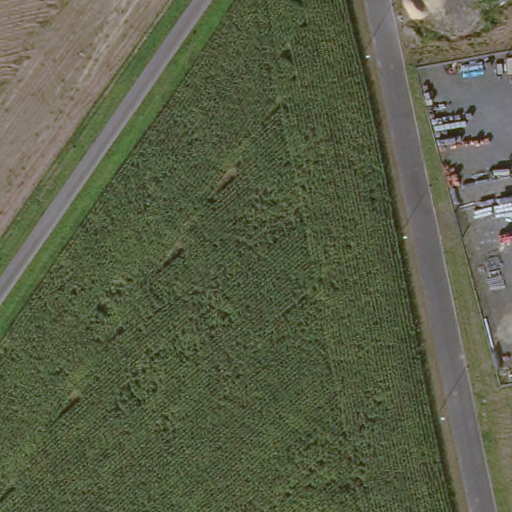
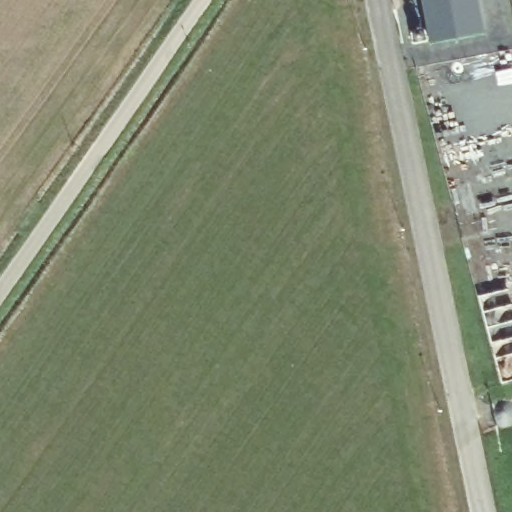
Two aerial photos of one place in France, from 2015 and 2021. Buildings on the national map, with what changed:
new [(485,38),(430,49),(421,0),(477,0),(485,38)]

